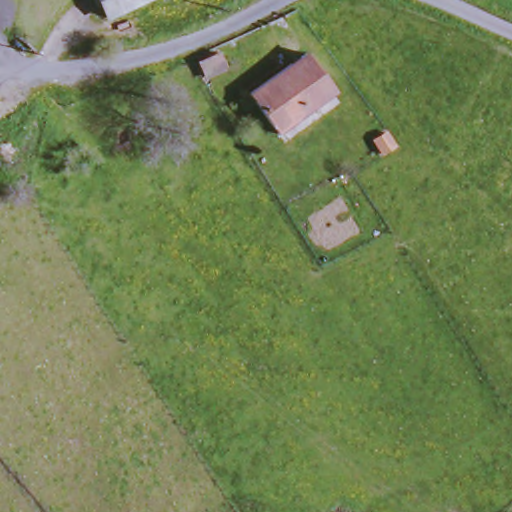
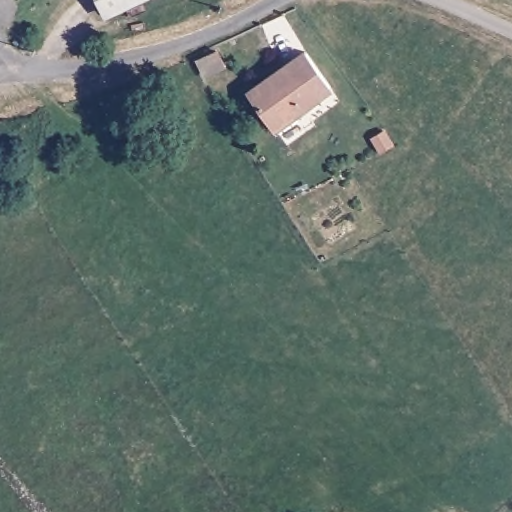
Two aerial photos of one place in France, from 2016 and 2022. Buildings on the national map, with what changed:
unchanged [(96,0),(139,0),(111,21),(96,0)]
unchanged [(224,66),(206,76),(189,53),(210,49),(224,66)]
unchanged [(302,54),(327,90),(299,109),(274,72),(302,54)]
unchanged [(299,109),(270,128),(245,91),(274,72),(299,109)]

